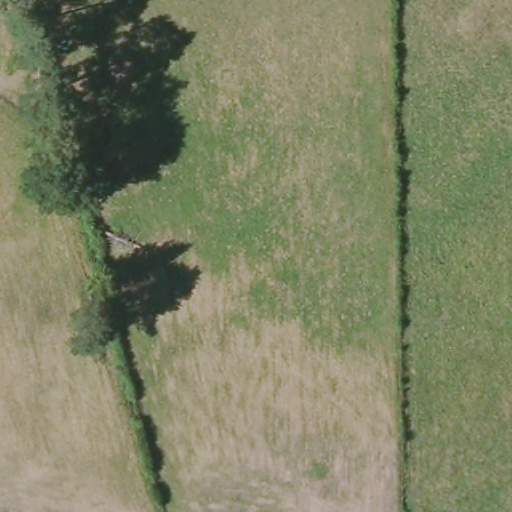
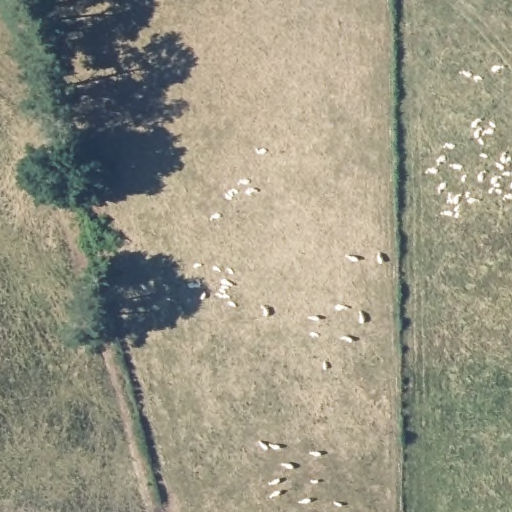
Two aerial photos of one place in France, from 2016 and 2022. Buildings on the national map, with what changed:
unchanged [(77,206),(72,165),(107,160),(112,206),(77,206)]

